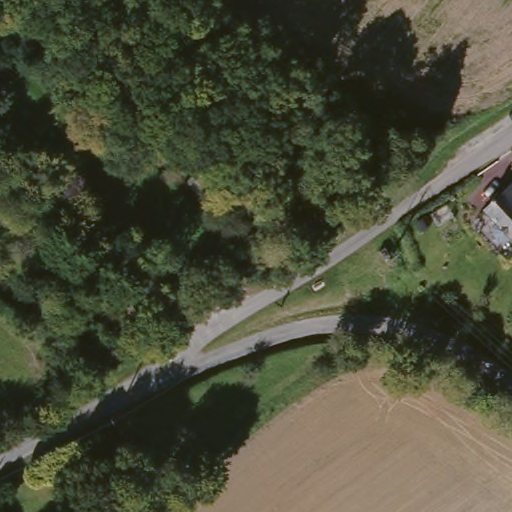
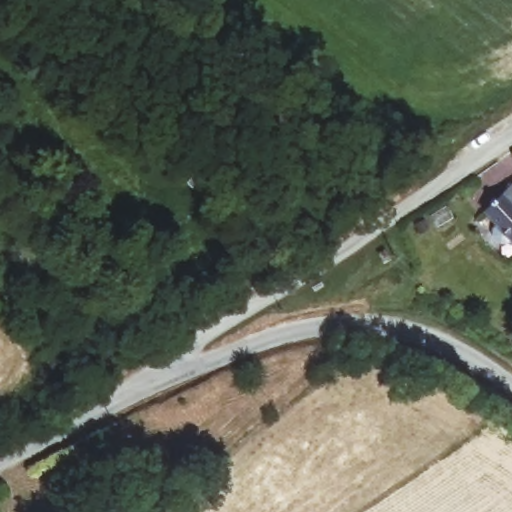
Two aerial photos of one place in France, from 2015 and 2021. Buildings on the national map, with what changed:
unchanged [(477,219),(509,187),(512,190),(512,255),(477,219)]
unchanged [(390,259),(383,265),(378,257),(385,251),(390,259)]

